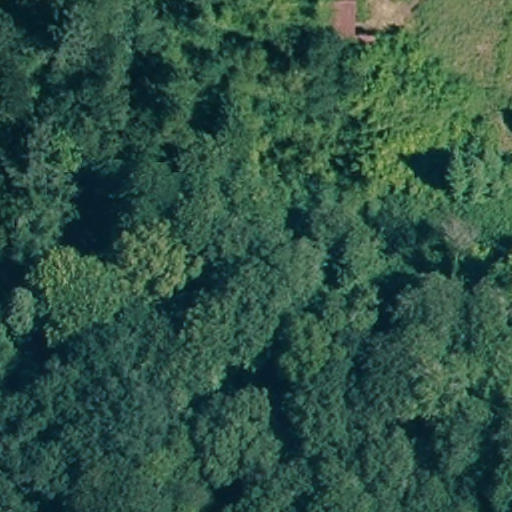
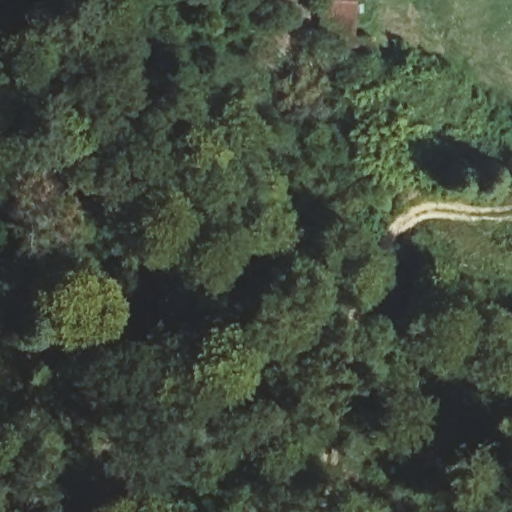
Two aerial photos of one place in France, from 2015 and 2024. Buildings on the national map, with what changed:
unchanged [(319,26),(318,0),(351,0),(351,28),(319,26)]
unchanged [(402,182),(401,197),(386,196),(386,181),(402,182)]

